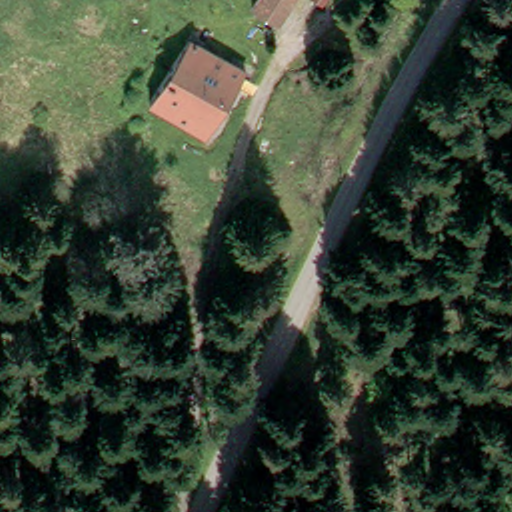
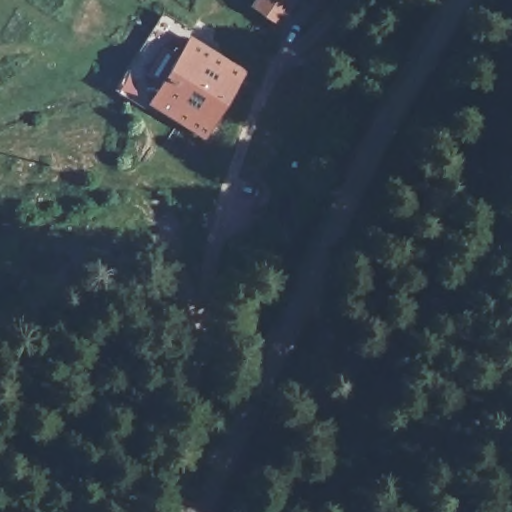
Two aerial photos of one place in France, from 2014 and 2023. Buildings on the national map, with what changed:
unchanged [(264,0),(300,0),(290,18),(263,2),(264,0)]
unchanged [(302,0),(316,0),(312,6),(302,0)]
unchanged [(151,107),(190,41),(249,76),(210,140),(151,107)]

